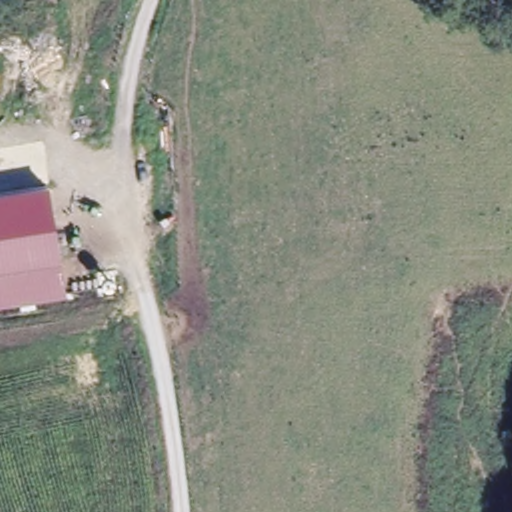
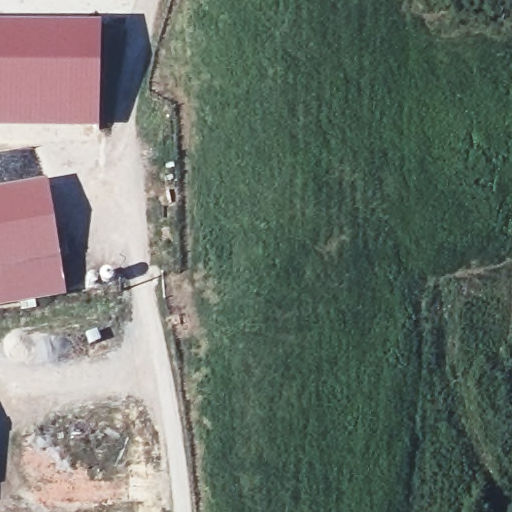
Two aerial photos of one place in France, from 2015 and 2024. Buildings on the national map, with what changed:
new [(0,130),(0,26),(99,27),(98,131),(0,130)]
unchanged [(67,296),(0,305),(0,190),(49,182),(67,296)]

